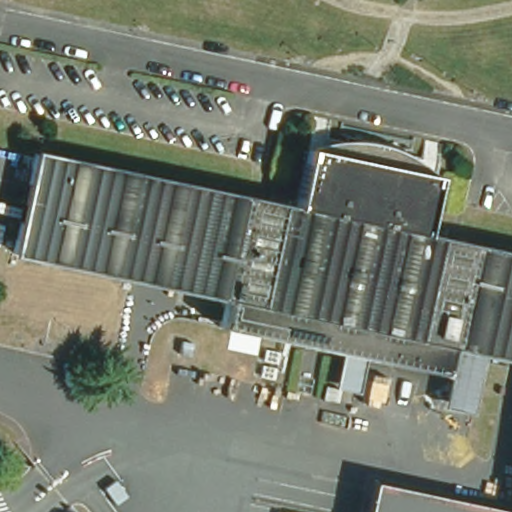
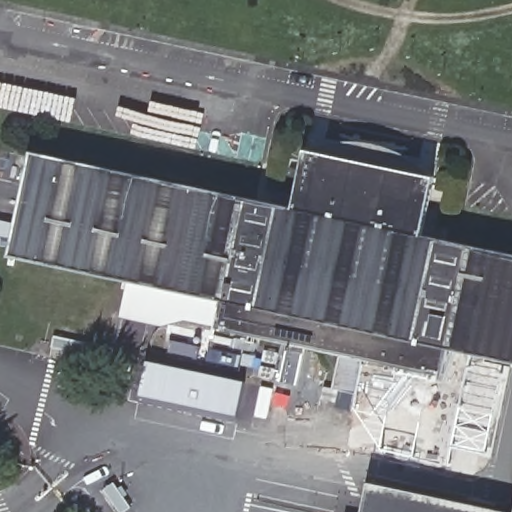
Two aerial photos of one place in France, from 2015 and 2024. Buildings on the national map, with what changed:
unchanged [(285,206),(297,147),(426,174),(416,236),(512,255),(512,353),(446,339),(440,369),(217,325),(221,296),(8,255),(27,160),(285,206)]
new [(139,396),(146,360),(246,382),(238,417),(139,396)]
unchanged [(372,479),(512,507),(512,512),(366,512),(372,479)]

